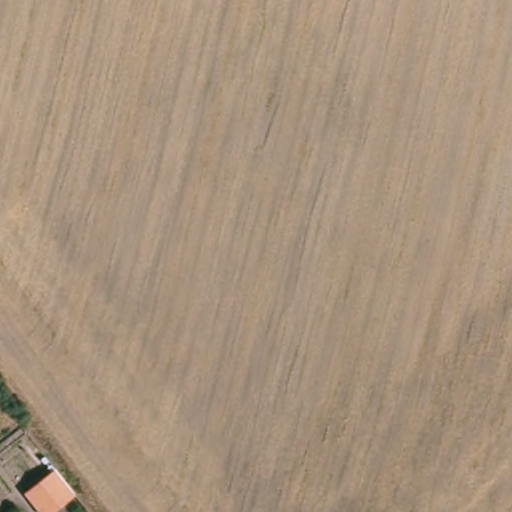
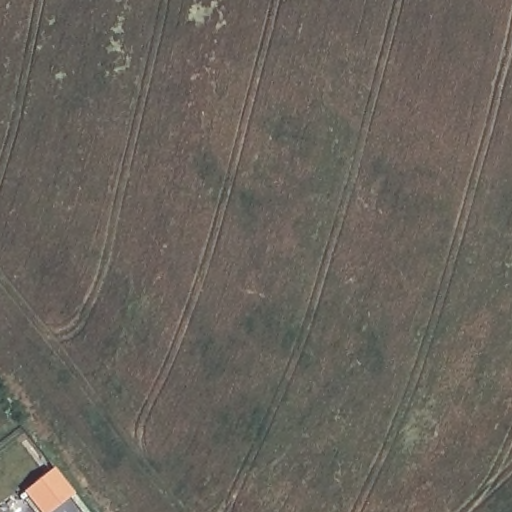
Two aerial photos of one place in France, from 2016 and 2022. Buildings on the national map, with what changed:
unchanged [(52,512),(36,512),(21,495),(50,470),(71,495),(52,512)]

